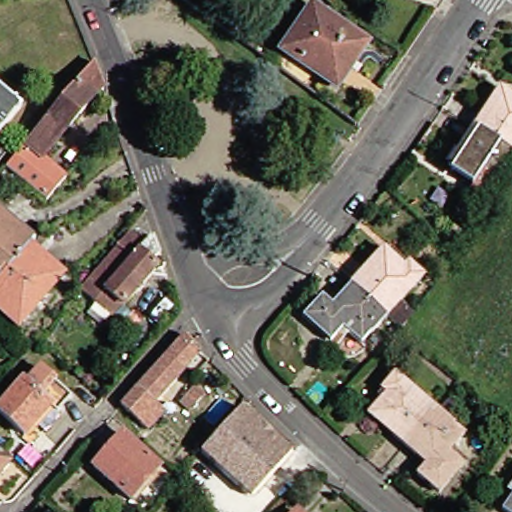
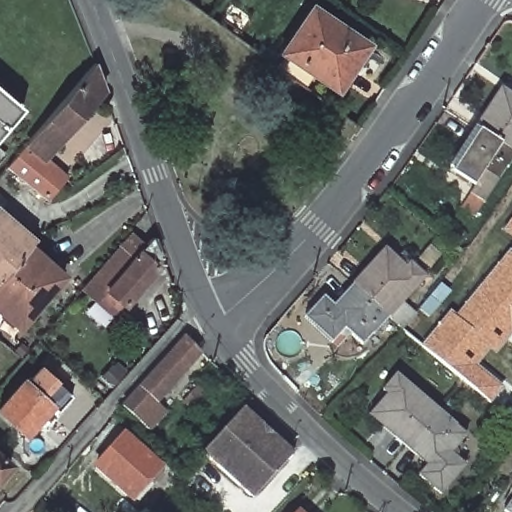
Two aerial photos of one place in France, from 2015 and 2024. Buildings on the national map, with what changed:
unchanged [(312,72),(281,51),(310,10),(360,46),(350,60),(332,87),(312,72)]
unchanged [(0,167),(0,163),(88,60),(97,85),(36,155),(63,175),(43,198),(0,167)]
unchanged [(465,132),(491,92),(512,106),(512,147),(504,159),(465,132)]
unchanged [(0,124),(0,93),(15,105),(0,124)]
unchanged [(465,132),(504,159),(487,182),(470,171),(461,184),(440,168),(465,132)]
new [(503,230),(512,218),(512,236),(503,230)]
unchanged [(11,259),(0,272),(0,228),(21,247),(11,259)]
unchanged [(74,291),(82,281),(121,235),(135,245),(140,239),(145,240),(150,254),(145,259),(142,262),(147,266),(125,293),(113,307),(105,317),(74,291)]
new [(496,355),(490,350),(478,366),(503,387),(492,402),(422,344),(450,311),(456,315),(510,249),(512,251),(512,334),(496,355)]
unchanged [(54,281),(9,333),(0,326),(0,276),(20,254),(54,281)]
unchanged [(393,331),(376,317),(341,288),(368,255),(388,271),(395,263),(410,276),(390,301),(407,315),(393,331)]
demolished [(512,270),(512,363),(497,385),(455,356),(512,270)]
unchanged [(376,317),(351,348),(334,334),(323,347),(295,323),(314,300),(325,308),(341,288),(376,317)]
unchanged [(159,413),(142,430),(117,405),(176,337),(194,353),(195,353),(149,404),(159,413)]
unchanged [(0,397),(12,382),(15,384),(30,368),(61,396),(47,411),(40,406),(15,434),(0,420),(0,397)]
unchanged [(411,433),(398,448),(365,420),(380,401),(373,395),(385,380),(427,413),(411,433)]
unchanged [(268,430),(291,450),(254,491),(247,491),(200,450),(240,405),(263,425),(268,430)]
unchanged [(456,436),(440,456),(455,468),(432,496),(408,476),(418,465),(398,448),(411,433),(427,413),(456,436)]
unchanged [(124,499),(89,466),(118,435),(153,468),(124,499)]
unchanged [(0,473),(0,468),(2,470),(0,473)]
unchanged [(511,492),(504,487),(512,475),(512,512),(499,512),(511,492)]

